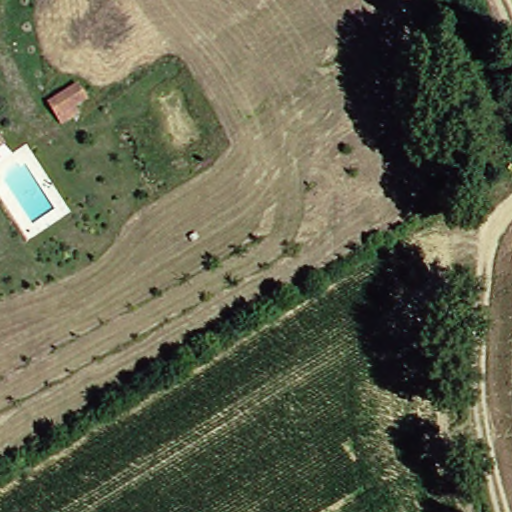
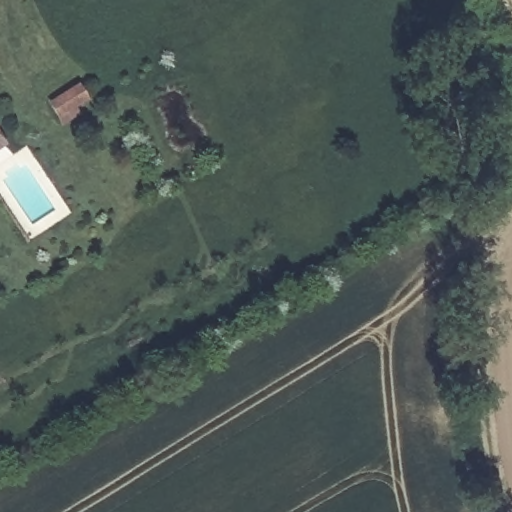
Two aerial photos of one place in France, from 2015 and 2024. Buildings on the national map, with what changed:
unchanged [(70,126),(61,109),(88,91),(96,106),(70,126)]

